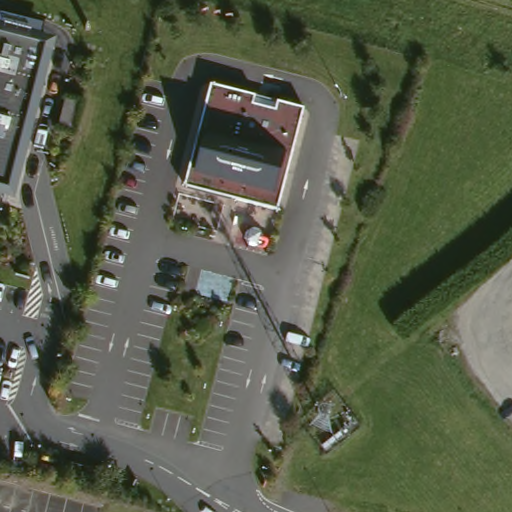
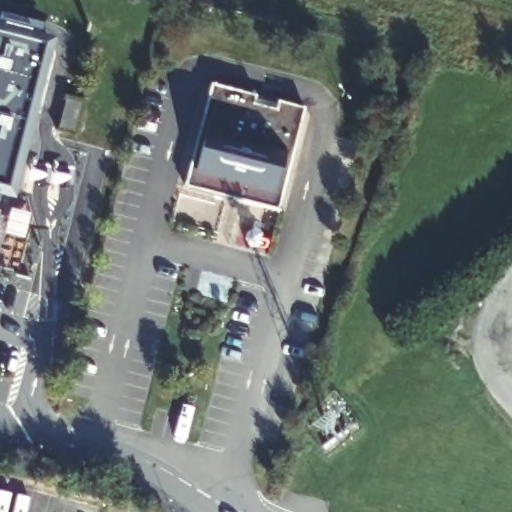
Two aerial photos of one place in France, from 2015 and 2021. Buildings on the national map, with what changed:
unchanged [(1,15),(47,27),(42,41),(53,44),(12,193),(0,191),(0,19),(1,15)]
unchanged [(210,89),(307,110),(278,213),(185,189),(210,89)]

